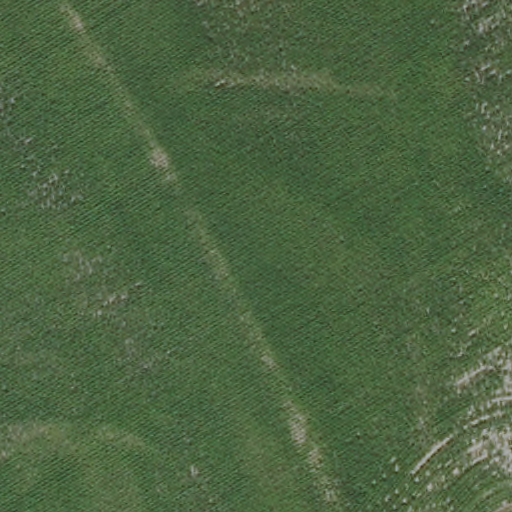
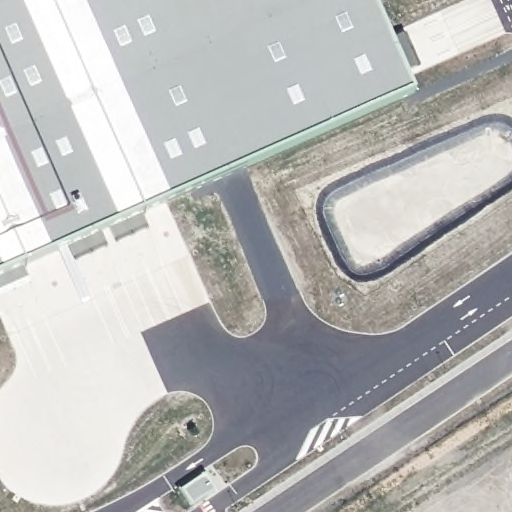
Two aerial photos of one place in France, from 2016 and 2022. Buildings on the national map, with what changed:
new [(0,0),(379,0),(418,88),(0,270),(0,0)]

